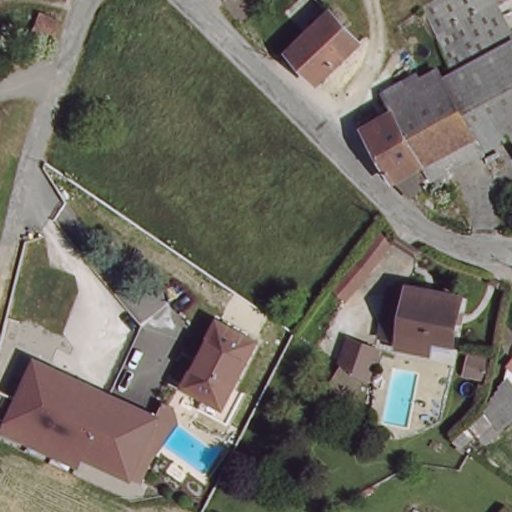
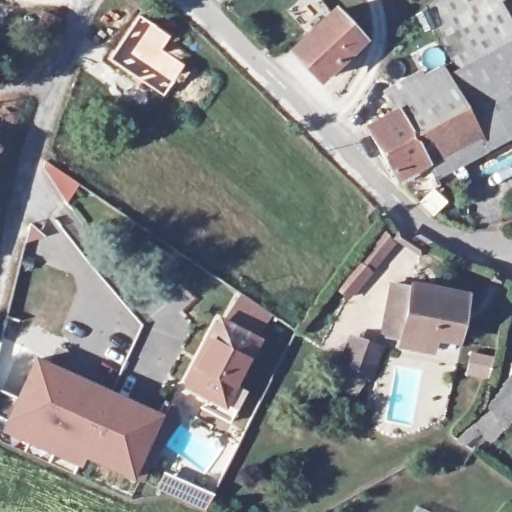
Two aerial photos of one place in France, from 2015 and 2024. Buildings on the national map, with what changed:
unchanged [(441,0),(506,0),(502,2),(444,35),(429,7),(441,0)]
unchanged [(502,2),(512,21),(512,120),(498,129),(507,145),(488,155),(479,139),(432,166),(419,173),(453,207),(443,218),(434,210),(415,191),(408,183),(391,161),(385,153),(379,143),(368,127),(464,75),(445,38),(444,35),(502,2)]
unchanged [(319,77),(293,47),(328,10),(331,6),(359,37),(319,77)]
new [(138,14),(171,37),(163,49),(185,65),(163,97),(108,60),(138,14)]
unchanged [(31,57),(39,25),(60,32),(49,65),(31,57)]
unchanged [(498,129),(512,120),(512,145),(498,129)]
new [(398,242),(349,301),(334,289),(384,230),(398,242)]
unchanged [(384,336),(393,289),(410,292),(411,286),(464,297),(456,343),(434,339),(433,349),(403,345),(403,340),(384,336)]
unchanged [(232,420),(203,407),(208,393),(185,382),(213,318),(251,336),(230,381),(245,390),(232,420)]
unchanged [(344,364),(348,341),(376,346),(369,381),(344,364)]
unchanged [(133,484),(0,421),(28,360),(159,421),(133,484)]
unchanged [(506,378),(512,385),(512,420),(483,444),(477,438),(462,451),(445,435),(506,378)]

